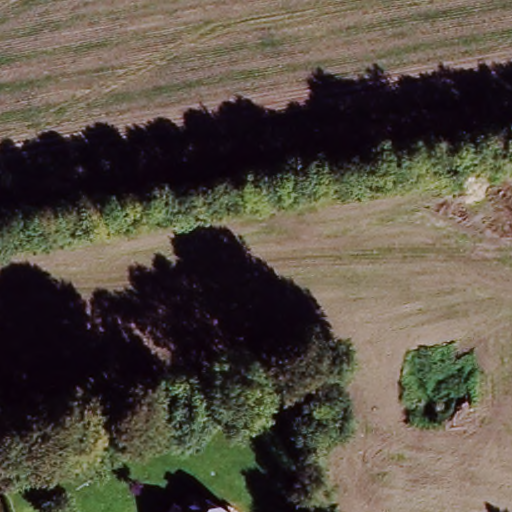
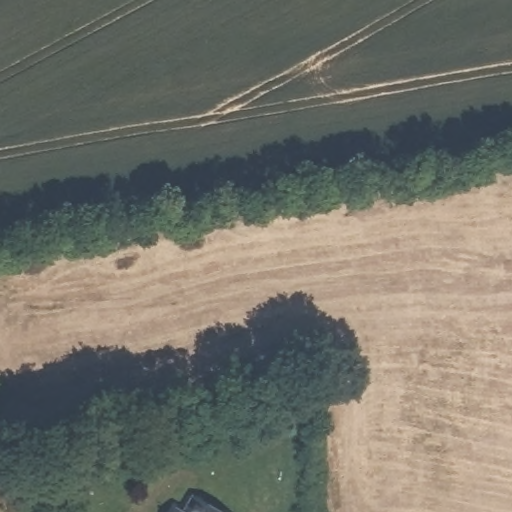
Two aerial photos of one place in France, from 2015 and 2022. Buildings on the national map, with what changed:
unchanged [(177,507),(184,510),(194,495),(221,512),(174,512),(177,507)]

